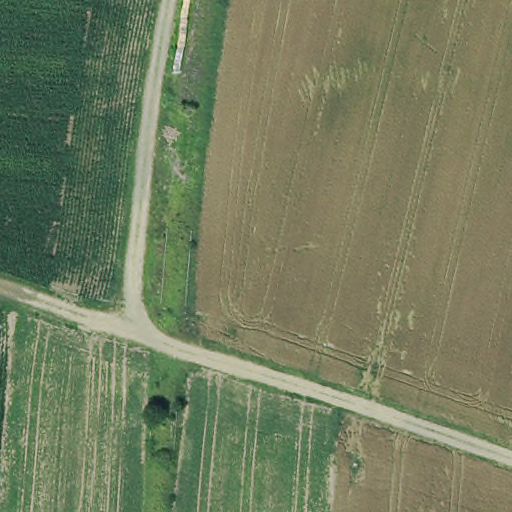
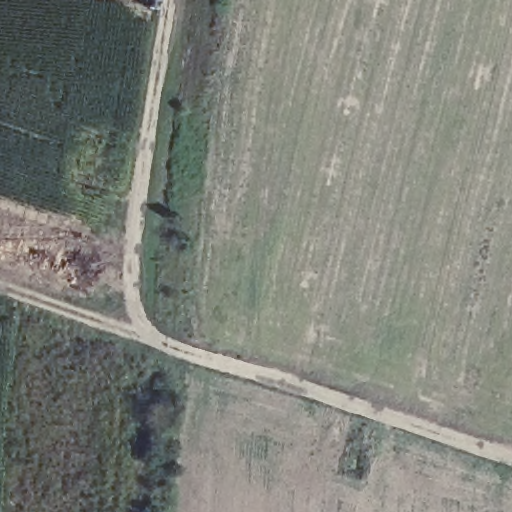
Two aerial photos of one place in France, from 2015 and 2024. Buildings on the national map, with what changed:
[]

